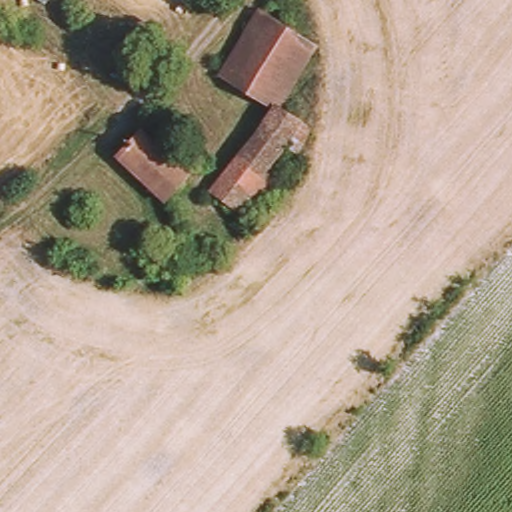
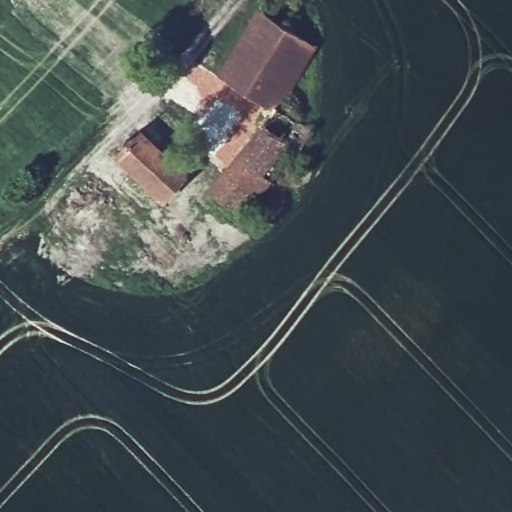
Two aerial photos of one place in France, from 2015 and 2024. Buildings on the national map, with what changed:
unchanged [(44,3),(40,0),(47,0),(44,3)]
unchanged [(225,66),(263,5),(283,17),(315,40),(278,101),(225,66)]
unchanged [(278,101),(300,117),(311,125),(292,150),(282,143),(262,168),(270,177),(248,208),(217,183),(278,101)]
unchanged [(169,201),(119,157),(143,130),(195,172),(169,201)]

